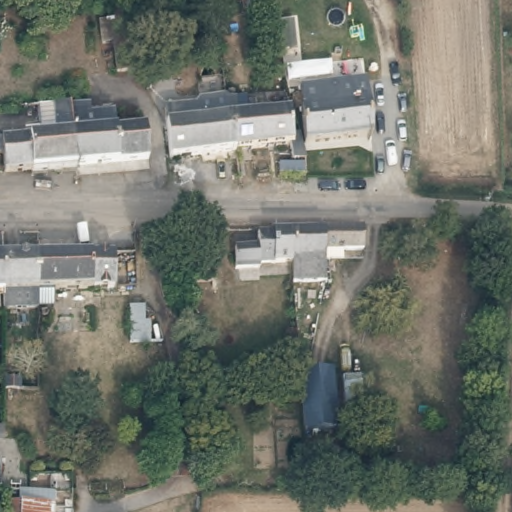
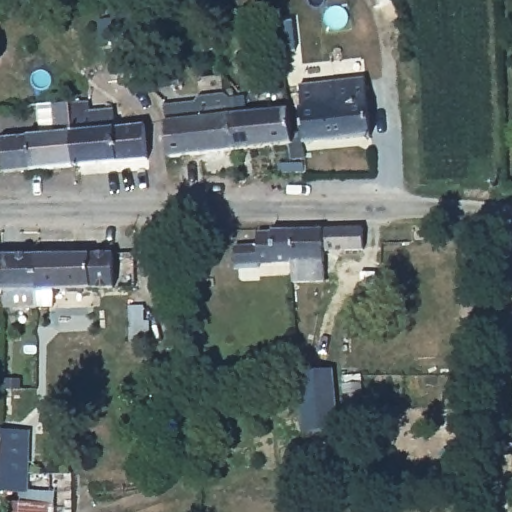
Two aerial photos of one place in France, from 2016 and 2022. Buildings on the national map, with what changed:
unchanged [(120,77),(116,40),(100,41),(99,24),(114,22),(112,0),(141,0),(144,43),(149,75),(120,77)]
unchanged [(307,140),(300,82),(288,83),(288,82),(280,19),(292,20),(295,46),(300,46),(303,63),(333,61),(334,78),(373,75),(378,133),(307,140)]
unchanged [(166,155),(164,128),(166,100),(189,98),(192,117),(232,113),(234,138),(235,149),(166,155)]
unchanged [(3,160),(0,160),(0,140),(35,136),(33,104),(67,100),(70,132),(73,168),(4,175),(3,160)]
unchanged [(287,164),(283,145),(235,149),(234,138),(232,113),(288,107),(302,163),(287,164)]
unchanged [(70,132),(94,129),(94,114),(117,112),(119,128),(143,126),(146,161),(73,168),(70,132)]
unchanged [(327,264),(303,265),(302,274),(293,275),(292,264),(289,233),(324,233),(363,232),(363,233),(364,251),(327,253),(327,264)]
unchanged [(234,265),(234,245),(254,245),(254,233),(289,233),(292,264),(234,265)]
unchanged [(9,291),(9,257),(96,255),(96,289),(9,291)]
unchanged [(0,257),(9,257),(9,291),(0,291),(0,257)]
unchanged [(309,431),(306,390),(304,372),(335,371),(339,429),(309,431)]
new [(4,428),(30,429),(28,494),(18,493),(18,491),(0,490),(0,427),(3,427),(4,428)]
demolished [(0,436),(9,436),(9,457),(9,474),(0,474),(0,436)]
unchanged [(15,506),(18,493),(53,499),(51,512),(8,512),(9,505),(15,506)]

